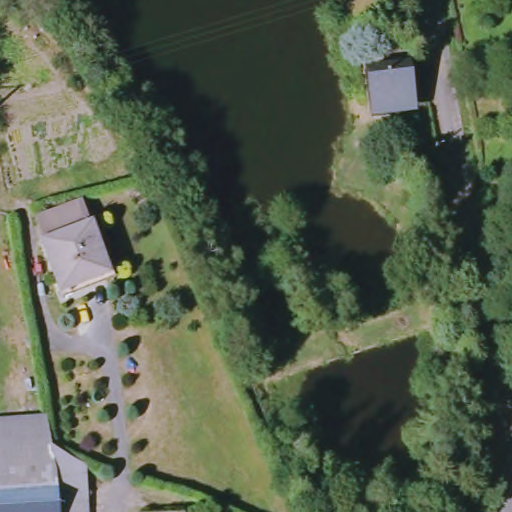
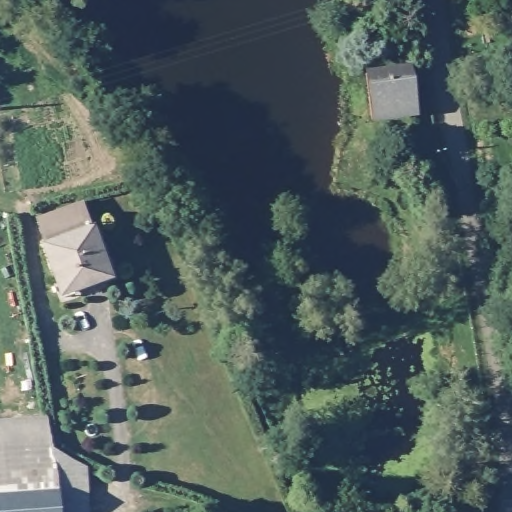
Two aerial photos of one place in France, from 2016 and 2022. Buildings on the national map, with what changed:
unchanged [(413,64),(421,116),(370,124),(362,72),(413,64)]
unchanged [(38,224),(88,207),(111,280),(62,296),(38,224)]
unchanged [(0,423),(47,418),(51,453),(82,467),(85,485),(87,512),(0,512),(0,423)]

